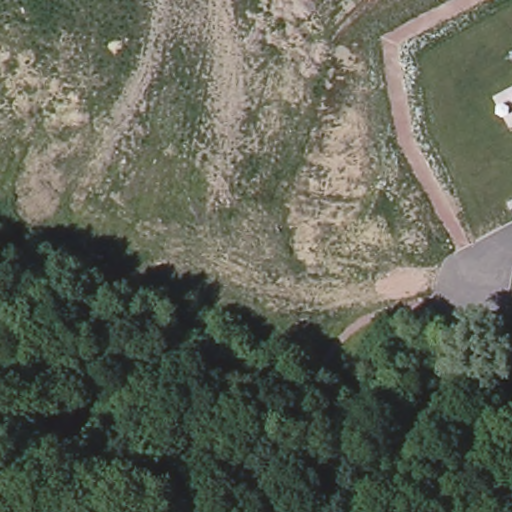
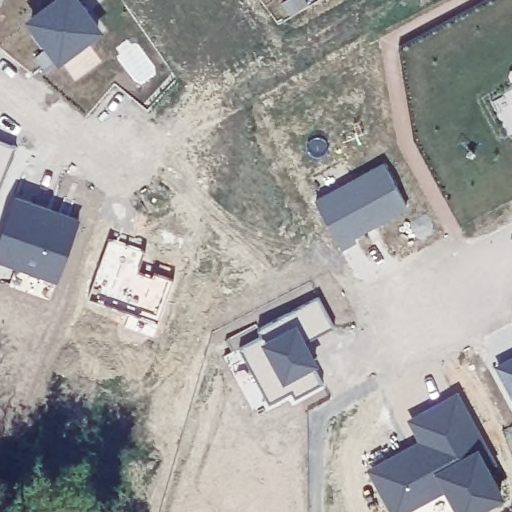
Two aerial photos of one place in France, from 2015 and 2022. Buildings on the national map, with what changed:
new [(80,2),(105,38),(57,71),(24,25),(58,0),(84,0),(80,2)]
new [(0,191),(0,143),(16,149),(0,191)]
new [(386,164),(407,212),(336,246),(316,201),(386,164)]
new [(58,285),(0,265),(0,241),(16,200),(79,222),(58,285)]
new [(144,252),(137,275),(153,280),(154,275),(173,281),(158,323),(88,301),(108,240),(144,252)]
new [(263,340),(259,331),(318,300),(334,330),(306,344),(319,370),(314,373),(324,387),(296,402),(292,395),(269,407),(241,351),(263,340)]
new [(512,360),(512,399),(497,368),(512,360)]
new [(407,421),(459,394),(498,467),(490,472),(505,503),(489,512),(454,512),(444,494),(412,512),(389,512),(369,472),(418,443),(407,421)]

